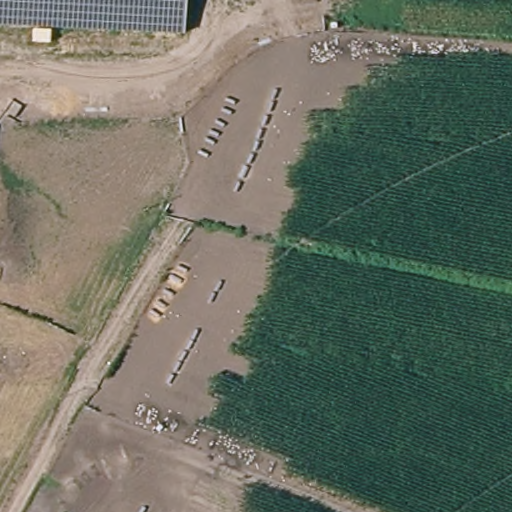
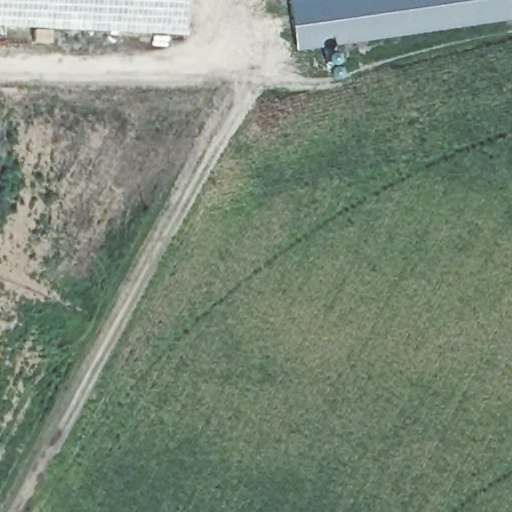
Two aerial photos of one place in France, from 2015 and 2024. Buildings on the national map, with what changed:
unchanged [(186,0),(185,35),(0,26),(0,0),(186,0)]
new [(297,50),(289,0),(512,0),(512,17),(409,32),(297,50)]

